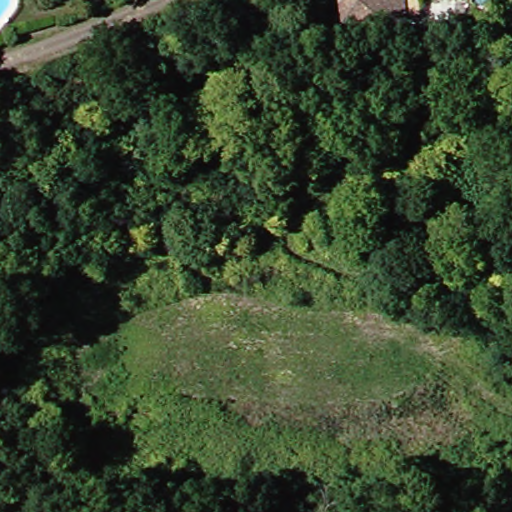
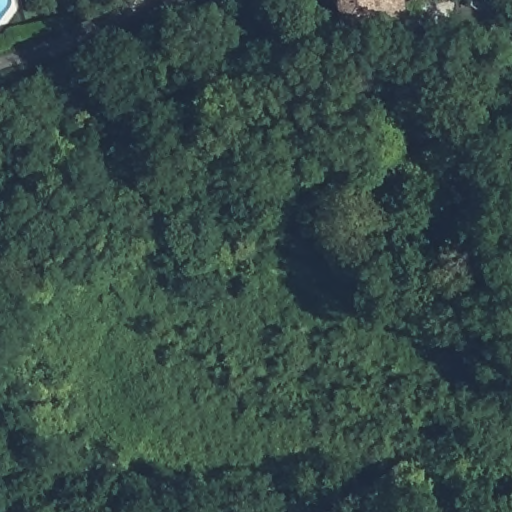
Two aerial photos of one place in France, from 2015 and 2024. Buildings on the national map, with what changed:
unchanged [(402,0),(404,21),(342,27),(339,0),(402,0)]

